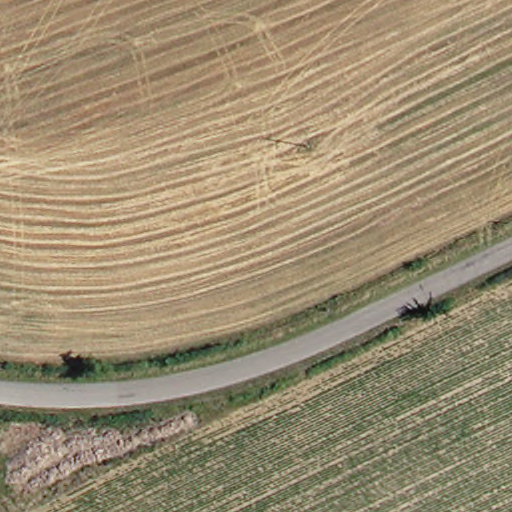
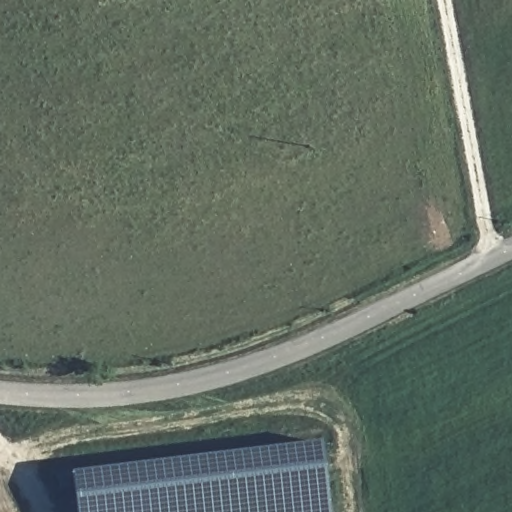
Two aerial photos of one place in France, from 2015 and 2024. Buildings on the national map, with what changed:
new [(321,443),(329,512),(76,512),(71,473),(321,443)]

